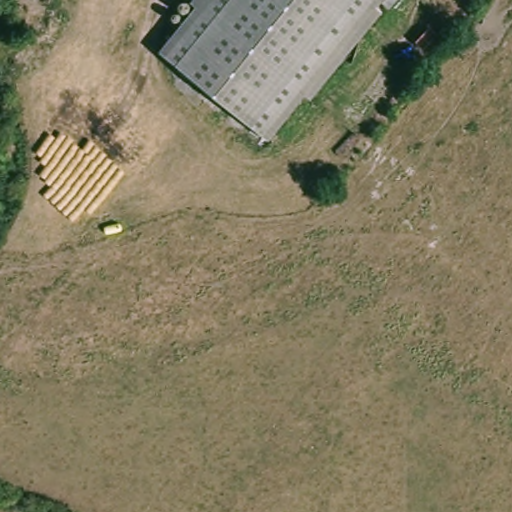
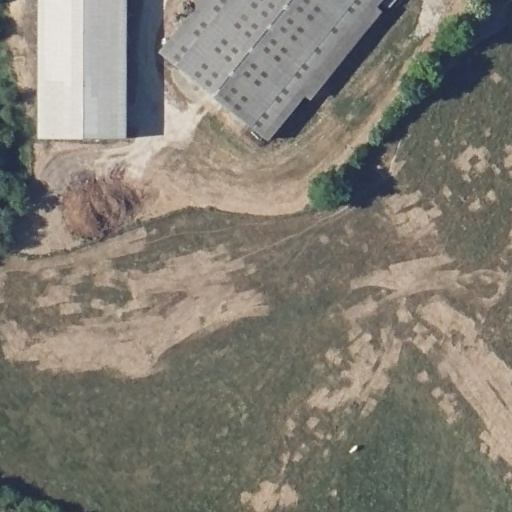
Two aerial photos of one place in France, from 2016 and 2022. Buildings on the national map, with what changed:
new [(37,139),(38,0),(128,0),(127,139),(37,139)]
unchanged [(368,0),(345,27),(348,31),(315,69),(311,65),(253,133),(149,44),(187,0),(368,0)]

